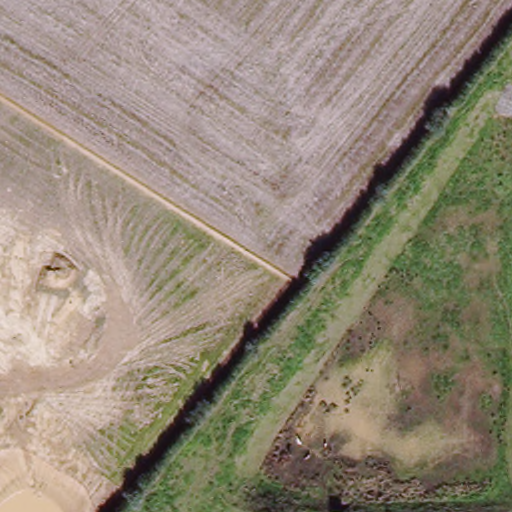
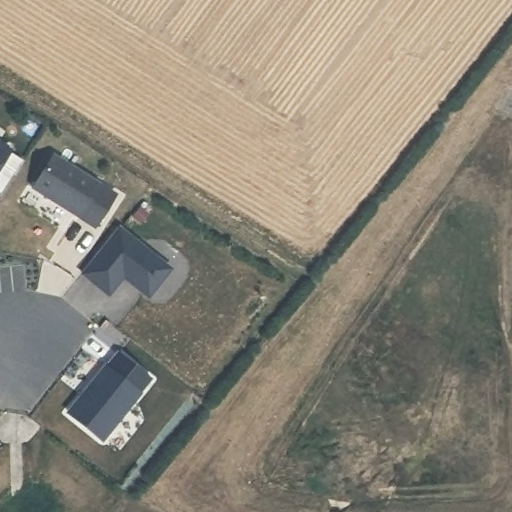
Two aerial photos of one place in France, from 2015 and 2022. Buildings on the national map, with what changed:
new [(12,152),(0,170),(0,144),(12,152)]
new [(53,158),(101,186),(80,225),(32,197),(53,158)]
new [(120,228),(173,270),(154,293),(147,296),(125,278),(110,297),(84,275),(120,228)]
new [(107,368),(140,396),(102,442),(69,415),(107,368)]

